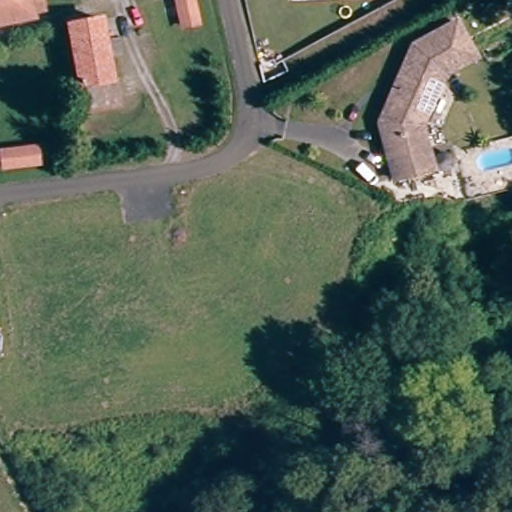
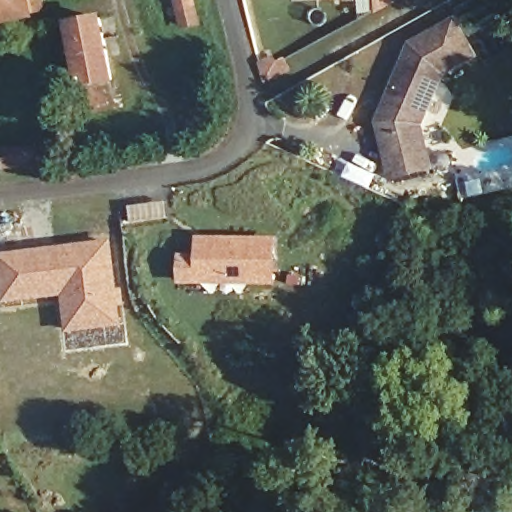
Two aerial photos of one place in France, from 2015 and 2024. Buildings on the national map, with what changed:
unchanged [(39,2),(0,12),(0,0),(38,0),(39,2)]
unchanged [(177,0),(185,0),(192,25),(178,29),(172,1),(177,0)]
unchanged [(289,1),(289,0),(300,0),(289,1)]
unchanged [(110,40),(117,76),(85,85),(75,25),(74,23),(106,17),(110,40)]
unchanged [(366,130),(372,118),(377,106),(382,96),(403,51),(448,27),(464,60),(431,78),(407,129),(416,170),(386,177),(378,179),(366,130)]
unchanged [(0,173),(0,157),(26,154),(28,169),(0,173)]
new [(166,201),(169,219),(128,224),(125,206),(166,201)]
new [(199,254),(198,239),(279,237),(279,286),(179,286),(180,255),(199,254)]
new [(119,287),(123,287),(126,325),(63,335),(59,297),(0,305),(0,253),(110,238),(119,287)]
new [(126,325),(129,345),(64,353),(63,335),(126,325)]

